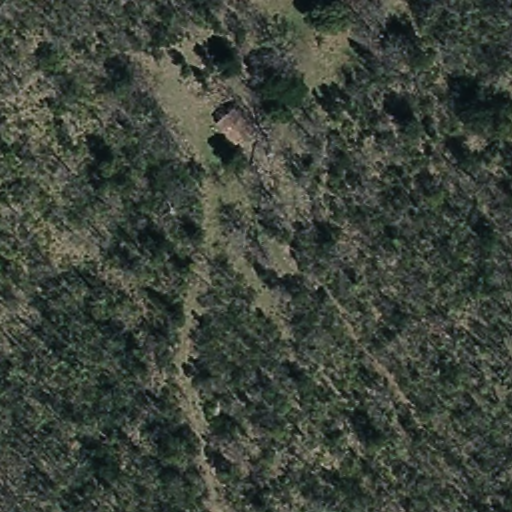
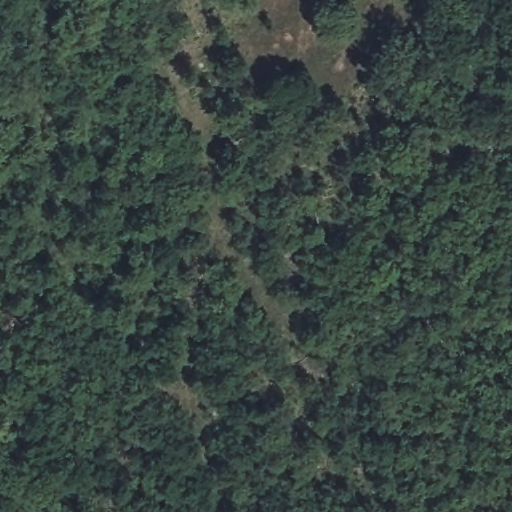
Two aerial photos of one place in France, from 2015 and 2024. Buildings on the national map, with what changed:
unchanged [(258,126),(235,141),(219,120),(243,104),(258,126)]

